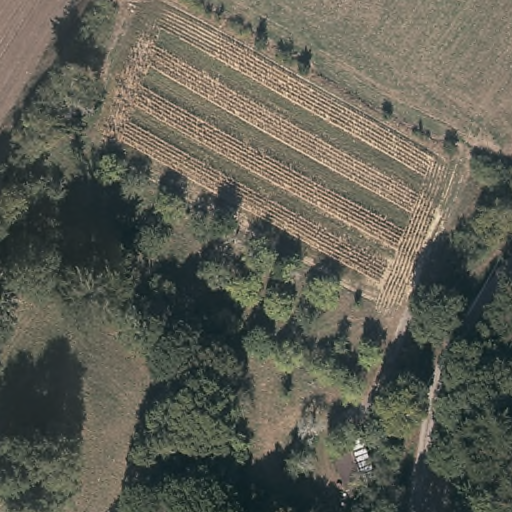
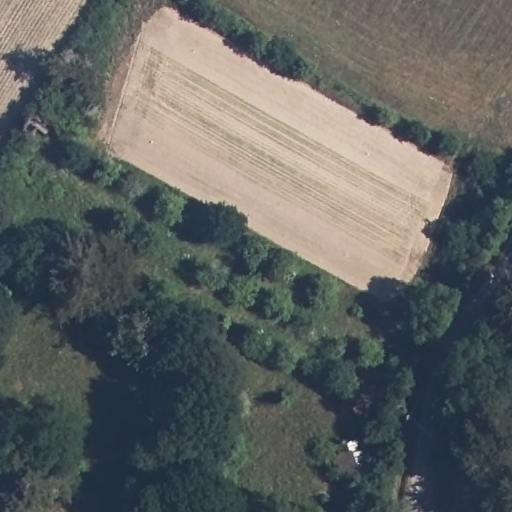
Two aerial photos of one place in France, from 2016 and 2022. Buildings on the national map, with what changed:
unchanged [(350,504),(334,454),(363,433),(388,483),(350,504)]

